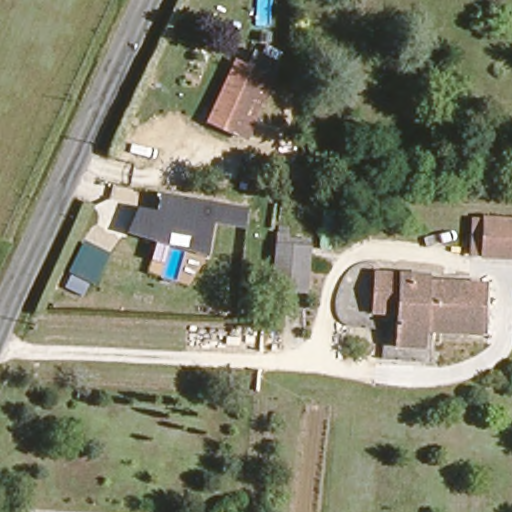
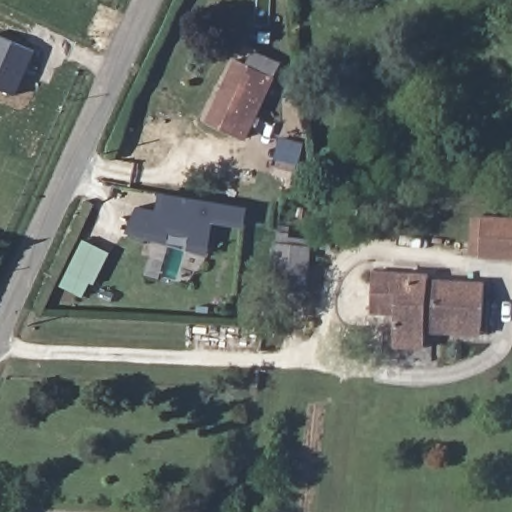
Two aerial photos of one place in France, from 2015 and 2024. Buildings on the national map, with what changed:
new [(35,52),(17,96),(0,89),(0,35),(35,52)]
unchanged [(278,62),(246,137),(220,126),(209,120),(236,60),(247,65),(254,51),(278,62)]
unchanged [(245,228),(212,223),(206,257),(127,234),(138,208),(157,212),(161,194),(249,209),(245,228)]
unchanged [(469,252),(471,215),(480,216),(482,216),(512,217),(512,255),(480,253),(477,253),(469,252)]
unchanged [(307,247),(302,294),(267,290),(273,242),(307,247)]
unchanged [(427,342),(394,341),(395,308),(370,307),(372,267),(428,269),(428,273),(476,276),(483,277),(480,320),(480,328),(472,328),(427,327),(427,342)]

